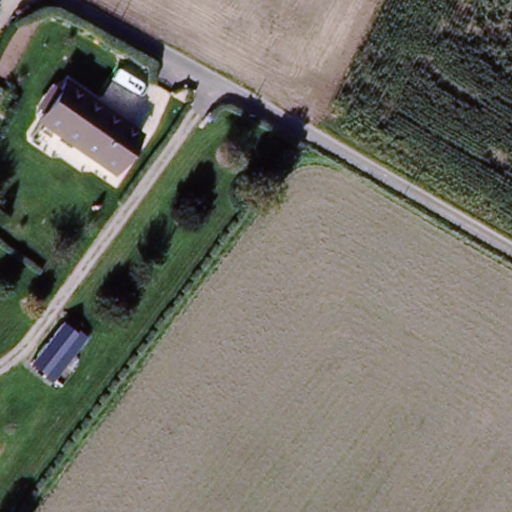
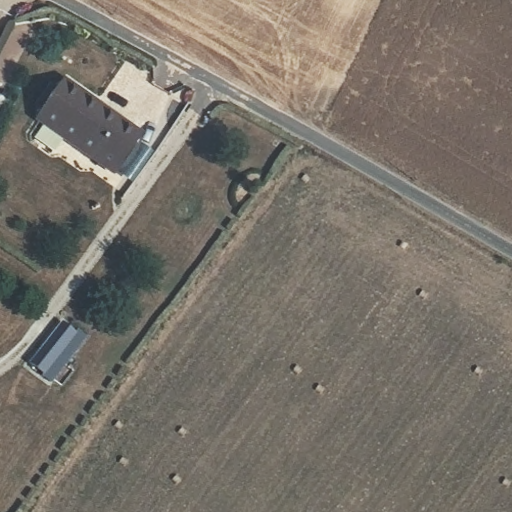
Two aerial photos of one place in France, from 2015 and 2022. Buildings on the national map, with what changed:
unchanged [(30,124),(64,79),(144,136),(110,182),(30,124)]
unchanged [(82,340),(49,381),(23,360),(58,318),(82,340)]

